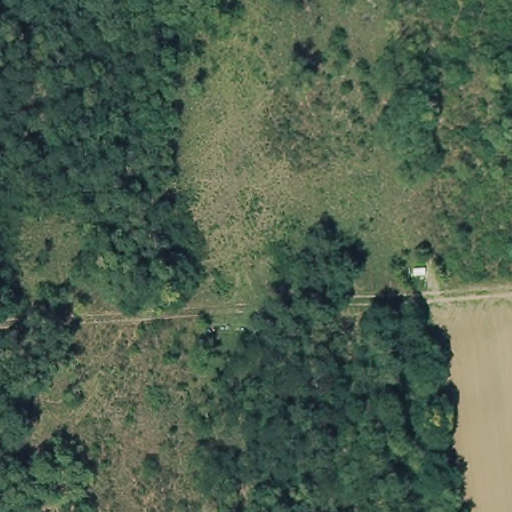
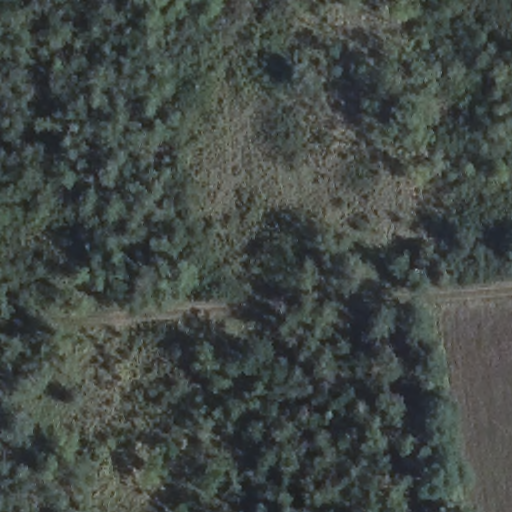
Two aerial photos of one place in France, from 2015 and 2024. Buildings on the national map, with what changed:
unchanged [(425,267),(425,277),(415,278),(415,268),(425,267)]

